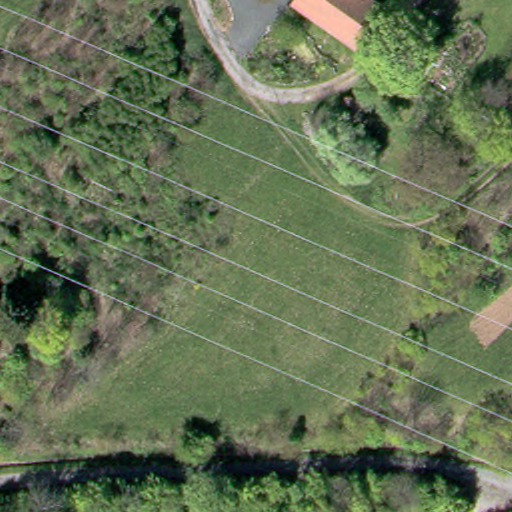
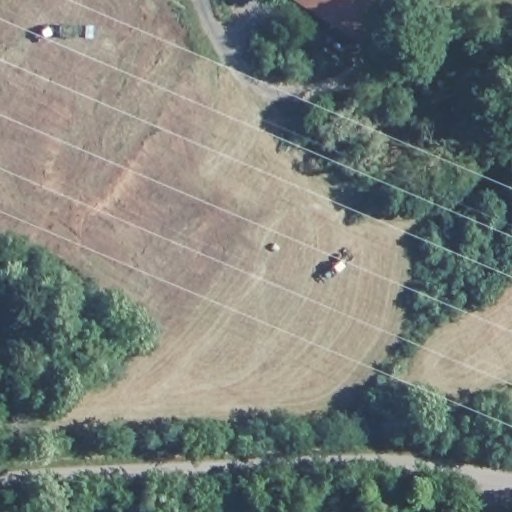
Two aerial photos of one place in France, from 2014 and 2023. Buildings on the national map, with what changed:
unchanged [(395,0),(364,52),(295,11),(301,0),(395,0)]

